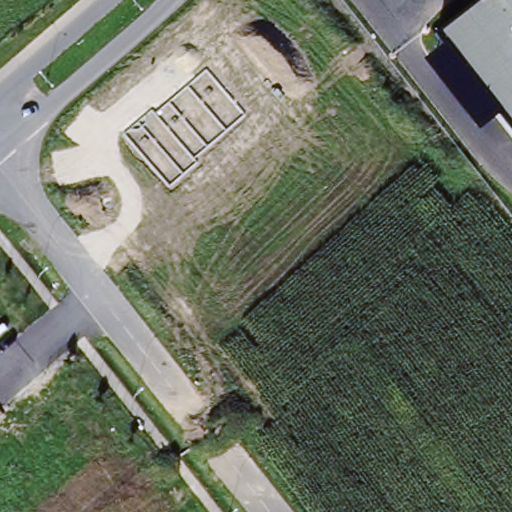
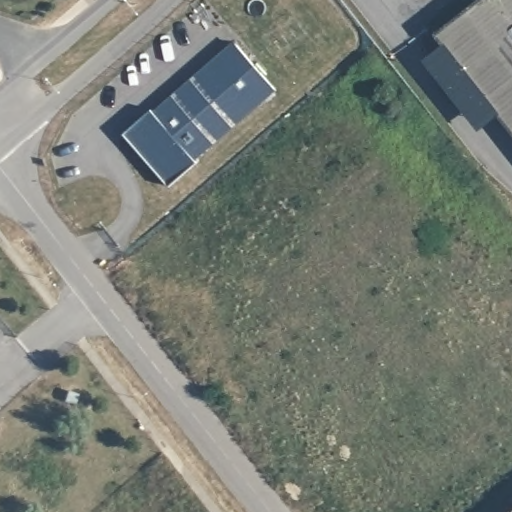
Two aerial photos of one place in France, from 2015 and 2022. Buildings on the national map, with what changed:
unchanged [(434,34),(476,0),(512,0),(512,134),(434,34)]
new [(125,135),(152,111),(235,42),(277,90),(196,160),(197,162),(170,185),(125,135)]

